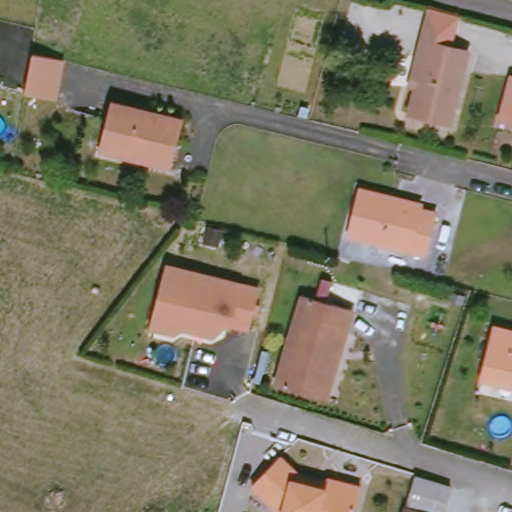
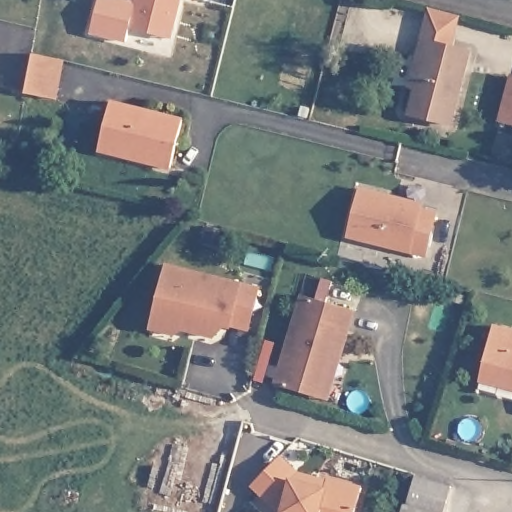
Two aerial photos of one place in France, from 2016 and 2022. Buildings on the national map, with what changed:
new [(101,0),(134,0),(137,1),(138,0),(182,0),(177,22),(168,21),(165,35),(132,26),(128,39),(93,30),(101,0)]
unchanged [(412,115),(425,59),(420,57),(423,40),(472,51),(467,70),(455,125),(412,115)]
unchanged [(33,54),(64,58),(58,97),(27,92),(33,54)]
unchanged [(500,125),(508,87),(510,79),(512,79),(512,128),(500,125)]
unchanged [(105,140),(115,104),(184,122),(173,170),(140,161),(102,150),(105,140)]
unchanged [(399,202),(398,208),(439,221),(428,263),(351,242),(363,194),(399,202)]
unchanged [(261,295),(250,336),(233,330),(232,333),(184,319),(175,326),(157,321),(170,270),(261,295)]
unchanged [(321,399),(280,388),(303,296),(356,310),(347,349),(333,402),(321,399)]
unchanged [(485,373),(496,332),(512,337),(512,392),(483,385),(485,373)]
unchanged [(277,512),(275,511),(250,484),(278,452),(298,471),(360,483),(353,512),(277,512)]
unchanged [(413,512),(410,511),(421,478),(456,491),(450,512),(413,512)]
unchanged [(410,512),(410,511),(413,512),(410,512)]

